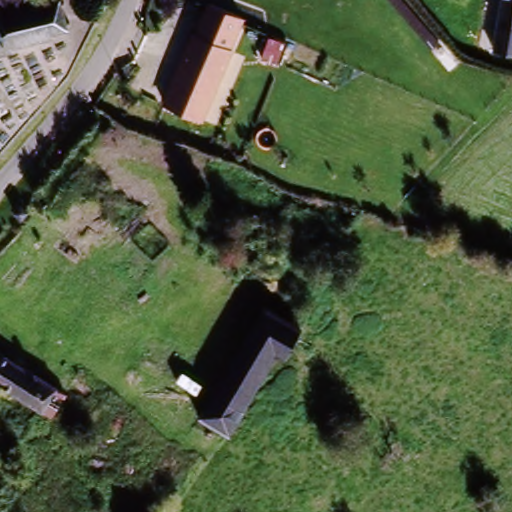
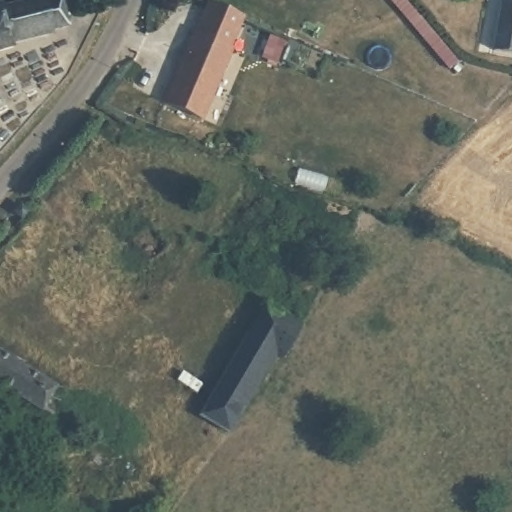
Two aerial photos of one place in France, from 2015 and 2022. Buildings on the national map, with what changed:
unchanged [(40,0),(41,5),(58,1),(65,25),(48,29),(50,34),(10,45),(10,50),(0,53),(0,10),(40,0)]
unchanged [(202,123),(159,109),(199,0),(207,0),(242,16),(202,123)]
unchanged [(512,0),(512,55),(493,52),(503,0),(512,0)]
unchanged [(105,127),(123,144),(60,220),(42,203),(105,127)]
unchanged [(285,314),(302,324),(285,351),(277,346),(247,328),(263,301),(285,314)]
unchanged [(247,328),(277,346),(227,429),(198,410),(247,328)]
unchanged [(62,390),(49,413),(0,384),(0,352),(62,390)]

